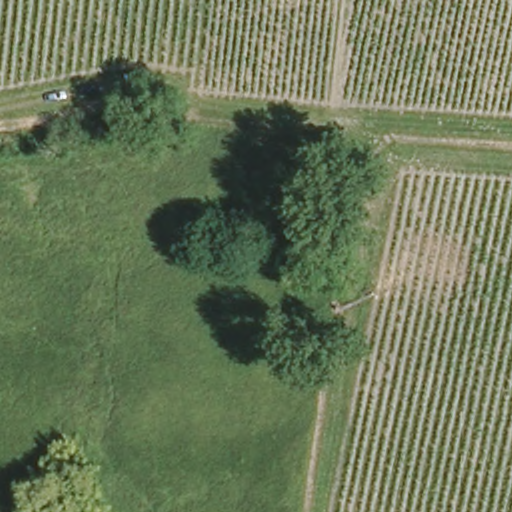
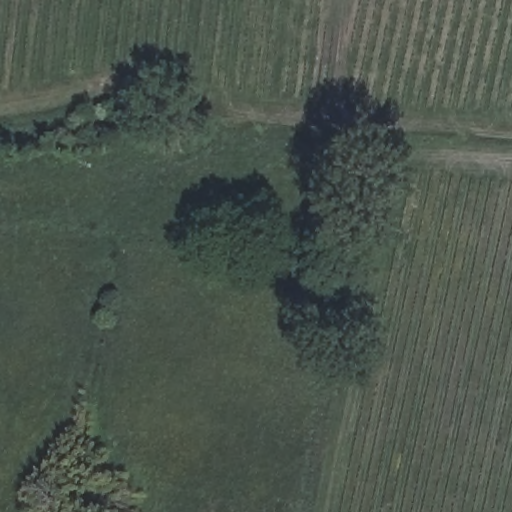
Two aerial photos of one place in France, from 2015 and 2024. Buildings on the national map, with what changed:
unchanged [(132,127),(121,100),(134,95),(137,100),(143,97),(149,110),(142,114),(146,124),(132,127)]

